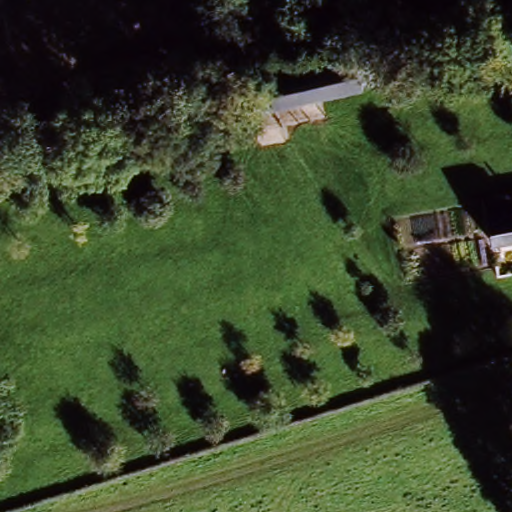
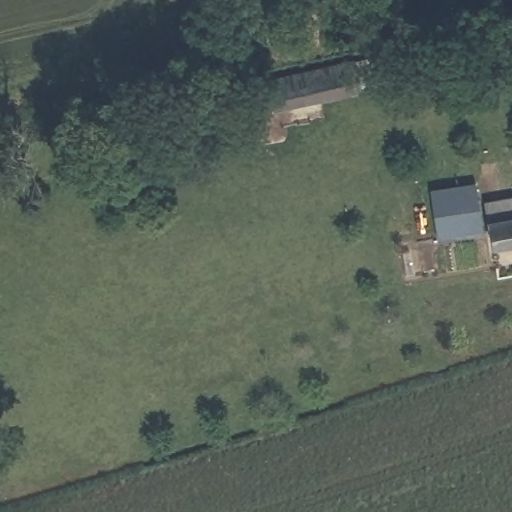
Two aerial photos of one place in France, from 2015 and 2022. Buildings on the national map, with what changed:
unchanged [(238,82),(354,58),(360,82),(243,107),(238,82)]
new [(476,180),(483,231),(438,238),(430,188),(476,180)]
unchanged [(490,201),(512,197),(512,238),(496,241),(490,201)]

